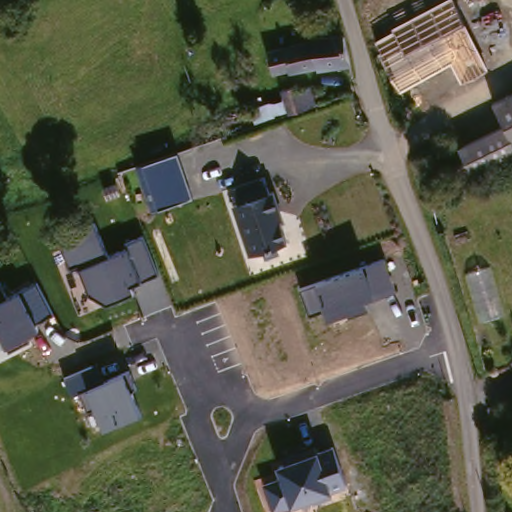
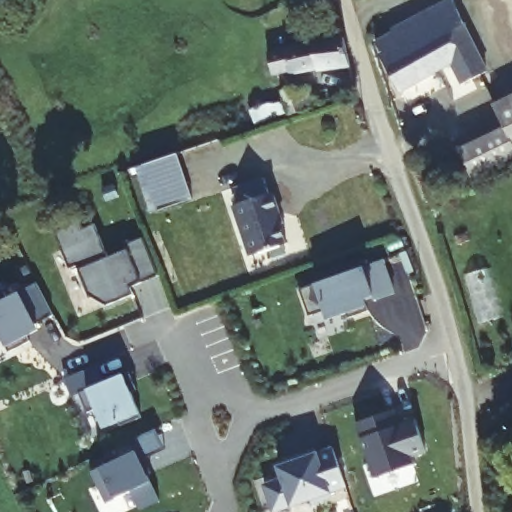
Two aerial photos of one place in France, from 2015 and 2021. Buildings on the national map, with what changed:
unchanged [(446,0),(455,0),(488,66),(468,77),(457,54),(400,81),(377,34),(393,26),(446,0)]
unchanged [(346,59),(284,67),(283,64),(265,66),(262,49),(280,46),(309,43),(308,37),(341,33),(346,59)]
unchanged [(285,107),(278,109),(277,101),(282,100),(279,89),(295,85),(296,93),(308,90),(314,106),(309,108),(287,115),(285,107)]
unchanged [(462,148),(508,124),(496,99),(512,92),(512,152),(474,170),(462,148)]
unchanged [(153,212),(137,166),(177,151),(194,198),(153,212)]
unchanged [(234,213),(239,211),(234,195),(263,184),(270,200),(273,199),(281,218),(277,219),(288,249),(252,263),(234,213)]
unchanged [(130,285),(132,293),(107,303),(88,291),(77,265),(70,266),(57,235),(92,220),(107,255),(128,246),(126,243),(142,235),(159,274),(130,285)]
unchanged [(327,319),(325,312),(310,314),(300,286),(316,284),(367,266),(384,259),(393,289),(373,297),(366,299),(370,305),(327,319)]
unchanged [(34,323),(38,332),(6,350),(0,339),(0,282),(9,297),(37,283),(53,312),(34,323)]
unchanged [(105,430),(94,408),(87,411),(80,389),(69,394),(61,378),(92,365),(100,380),(122,369),(141,413),(105,430)]
new [(393,410),(398,422),(399,425),(414,419),(426,453),(412,458),(415,466),(373,479),(355,424),(393,410)]
new [(100,466),(120,458),(115,448),(155,430),(163,449),(140,458),(150,482),(159,502),(138,512),(129,492),(115,499),(105,504),(91,472),(100,466)]
unchanged [(331,490),(291,504),(271,511),(262,483),(280,477),(275,466),(333,444),(347,485),(331,490)]

